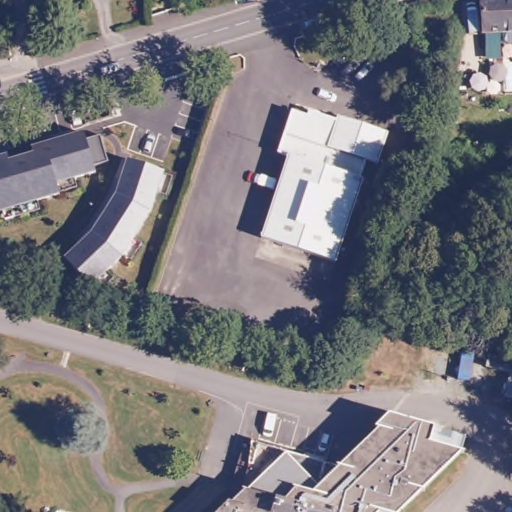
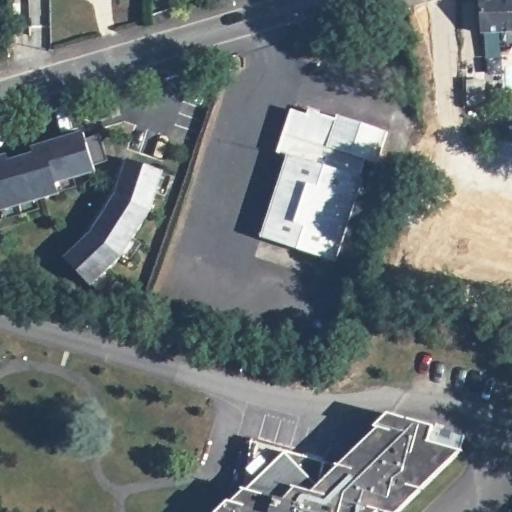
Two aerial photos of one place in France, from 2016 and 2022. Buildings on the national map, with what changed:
unchanged [(502,27),(481,28),(480,0),(512,0),(512,38),(506,38),(503,35),(502,27)]
unchanged [(311,114),(312,109),(331,114),(332,111),(381,126),(373,156),(360,153),(356,170),(360,171),(335,256),(261,233),(285,153),(273,150),(285,107),(311,114)]
unchanged [(57,186),(61,197),(0,214),(0,157),(84,134),(95,174),(57,186)]
unchanged [(167,171),(155,214),(126,254),(94,285),(62,255),(84,236),(111,195),(123,159),(167,171)]
unchanged [(250,488),(291,500),(303,489),(322,493),(404,415),(441,426),(443,437),(477,447),(408,512),(403,512),(383,507),(378,512),(223,512),(250,488)]

